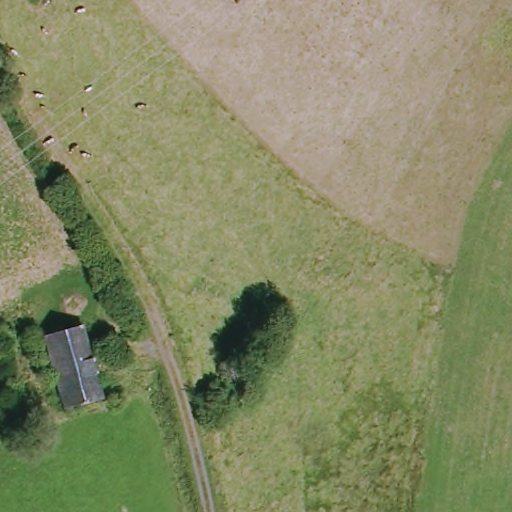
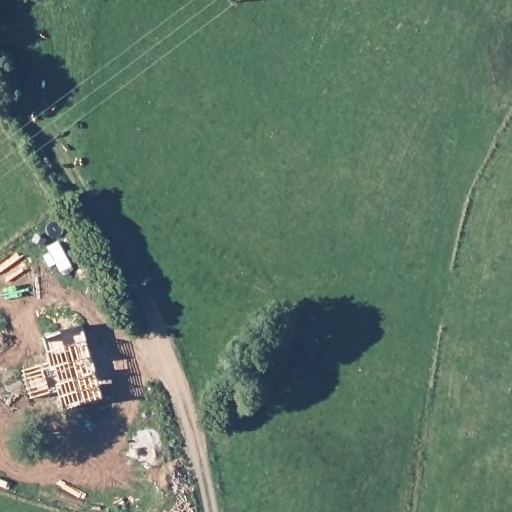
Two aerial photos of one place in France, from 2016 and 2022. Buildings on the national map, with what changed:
unchanged [(43,333),(85,325),(106,397),(64,407),(43,333)]

